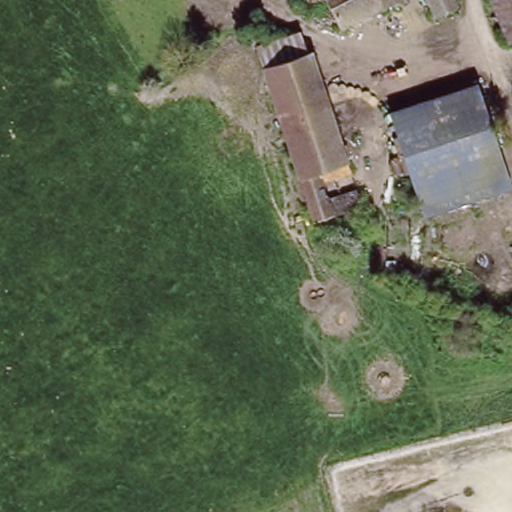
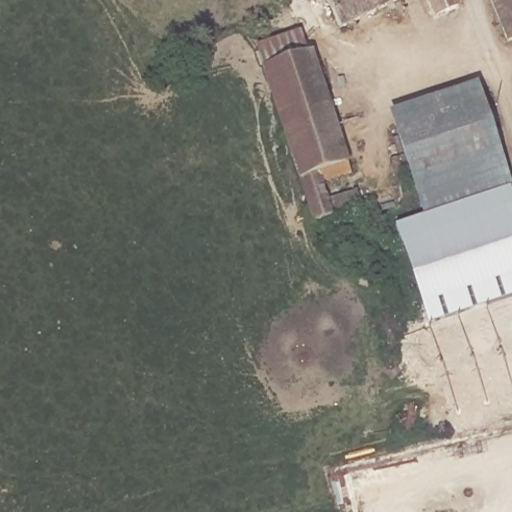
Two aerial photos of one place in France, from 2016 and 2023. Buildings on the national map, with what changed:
unchanged [(311,5),(308,0),(322,0),(311,5)]
unchanged [(339,25),(325,0),(386,0),(339,25)]
unchanged [(458,4),(433,15),(426,0),(456,0),(458,4)]
unchanged [(507,41),(492,0),(512,0),(512,40),(507,41)]
unchanged [(312,54),(352,170),(322,181),(330,205),(351,199),(353,206),(315,219),(265,71),(312,54)]
unchanged [(390,110),(476,84),(509,188),(421,219),(390,110)]
new [(423,306),(395,225),(420,215),(421,219),(509,188),(512,196),(512,277),(423,306)]

